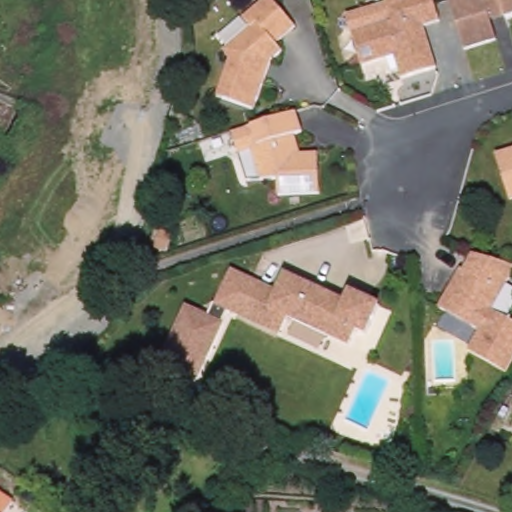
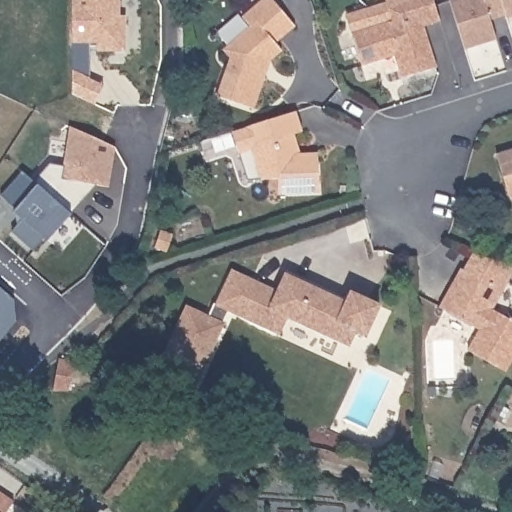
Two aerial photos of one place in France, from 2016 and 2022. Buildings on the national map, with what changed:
new [(118,0),(118,17),(124,17),(124,52),(95,52),(95,44),(87,44),(70,44),(71,0),(118,0)]
unchanged [(254,110),(217,98),(229,59),(222,51),(249,27),(241,17),(262,0),(272,0),(294,27),(275,44),(281,51),(270,61),(254,110)]
unchanged [(436,0),(443,24),(426,29),(439,71),(404,82),(397,58),(367,67),(357,35),(351,17),(371,11),(389,5),(387,0),(436,0)]
unchanged [(467,47),(453,0),(512,0),(512,17),(510,17),(509,13),(494,17),(500,37),(467,47)]
new [(70,44),(87,44),(87,81),(101,88),(93,107),(70,97),(70,44)]
unchanged [(300,151),(318,152),(317,192),(276,191),(276,175),(260,174),(252,147),(239,151),(232,128),(296,109),(303,129),(294,132),(300,151)]
new [(40,241),(30,253),(8,234),(19,222),(10,214),(12,212),(0,201),(0,196),(20,174),(31,184),(51,162),(60,166),(69,127),(114,150),(103,192),(93,189),(82,201),(68,217),(44,244),(40,241)]
unchanged [(495,154),(512,149),(512,197),(509,197),(495,154)]
unchanged [(156,233),(168,237),(162,254),(150,250),(156,233)]
unchanged [(512,276),(494,311),(512,321),(512,365),(507,373),(470,352),(481,332),(442,308),(461,277),(463,278),(473,254),(512,266),(512,276)]
unchanged [(245,318),(228,312),(193,386),(155,367),(185,302),(207,313),(231,267),(261,281),(245,318)]
unchanged [(276,287),(285,272),(343,297),(346,292),(379,305),(368,333),(357,330),(353,341),(293,320),(283,334),(245,318),(261,281),(276,287)]
new [(14,300),(15,322),(0,341),(0,289),(14,300)]
unchanged [(70,367),(69,398),(54,397),(55,364),(70,367)]
unchanged [(7,512),(0,512),(0,495),(12,505),(7,512)]

